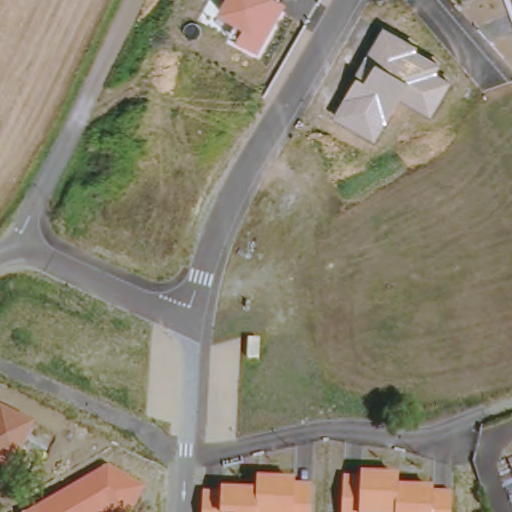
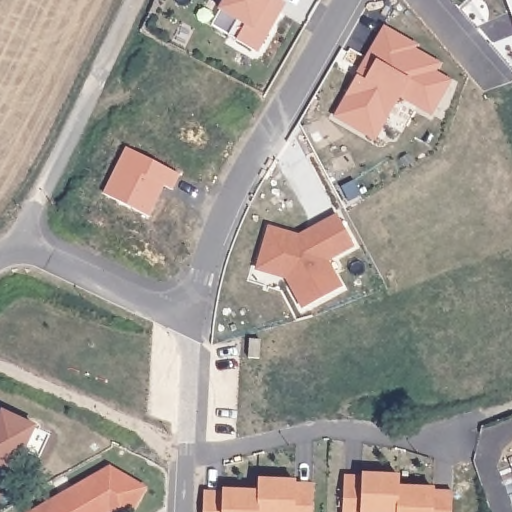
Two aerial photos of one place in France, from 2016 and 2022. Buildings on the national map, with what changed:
unchanged [(259,51),(229,34),(235,23),(217,12),(223,0),(280,0),(285,3),(259,51)]
unchanged [(506,0),(512,0),(512,17),(506,0)]
unchanged [(418,44),(417,49),(440,62),(438,72),(450,77),(430,114),(398,96),(375,139),(334,115),(355,75),(384,24),(418,44)]
new [(127,148),(178,174),(171,188),(162,185),(147,215),(104,194),(127,148)]
new [(285,279),(255,271),(269,227),(298,236),(335,215),(355,247),(328,262),(342,285),(302,309),(285,279)]
unchanged [(12,472),(0,467),(0,413),(35,429),(12,472)]
unchanged [(145,492),(134,512),(28,512),(107,467),(145,492)]
unchanged [(400,477),(400,487),(452,488),(451,512),(342,512),(343,474),(400,477)]
unchanged [(312,482),(311,512),(202,512),(203,488),(256,488),(257,477),(312,482)]

